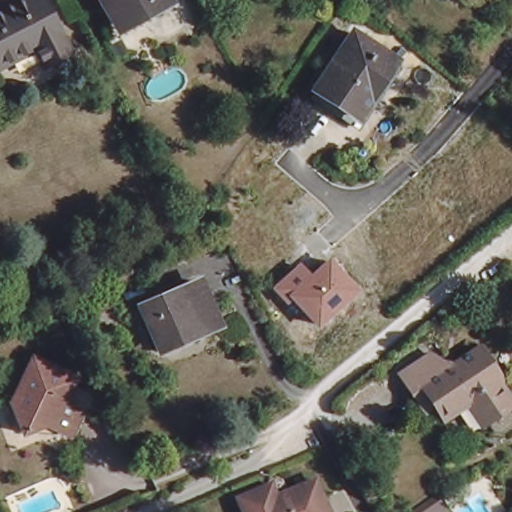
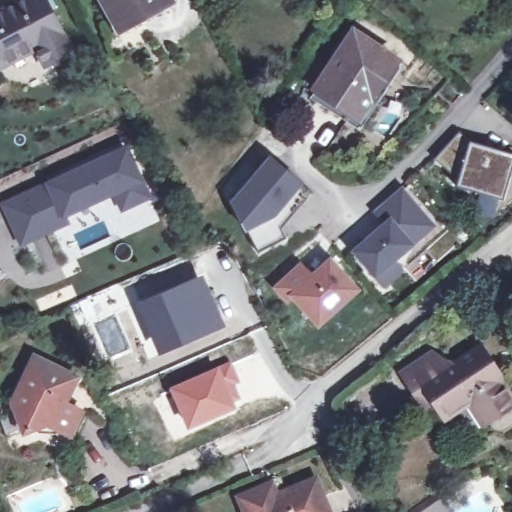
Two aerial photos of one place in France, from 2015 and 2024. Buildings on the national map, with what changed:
unchanged [(0,57),(0,4),(9,0),(36,0),(62,47),(40,59),(35,62),(26,44),(0,57)]
unchanged [(170,0),(171,4),(120,32),(102,0),(170,0)]
unchanged [(395,62),(361,117),(360,118),(360,119),(359,120),(358,120),(358,121),(357,121),(356,122),(355,122),(353,122),(352,122),(351,122),(350,122),(349,122),(348,121),(347,121),(347,120),(330,110),(329,112),(310,100),(352,32),(395,62)]
unchanged [(433,161),(457,132),(468,142),(512,154),(512,167),(502,201),(455,187),(457,180),(445,170),(433,161)]
new [(123,148),(146,197),(120,209),(112,192),(61,216),(65,222),(20,244),(1,206),(123,148)]
unchanged [(268,156),(291,176),(267,203),(279,227),(284,238),(255,252),(230,201),(268,156)]
new [(291,176),(310,192),(279,227),(267,203),(291,176)]
new [(373,212),(383,204),(401,189),(433,227),(393,261),(401,271),(381,287),(351,250),(383,224),(373,212)]
unchanged [(318,330),(291,301),(285,305),(271,288),(299,262),(310,276),(328,257),(359,290),(318,330)]
unchanged [(142,307),(200,283),(217,322),(160,347),(142,307)]
unchanged [(88,303),(106,296),(110,307),(92,315),(88,303)]
unchanged [(421,408),(395,369),(425,350),(436,367),(473,343),(492,372),(492,376),(506,399),(505,401),(511,411),(509,422),(496,430),(486,427),(480,417),(465,395),(438,412),(430,402),(421,408)]
unchanged [(62,397),(76,405),(65,426),(43,416),(19,423),(7,394),(25,355),(28,350),(71,371),(68,377),(60,392),(62,397)]
new [(231,360),(241,382),(235,386),(238,396),(235,397),(238,406),(187,429),(168,387),(231,360)]
unchanged [(322,512),(238,512),(233,502),(258,492),(265,490),(270,502),(310,485),(322,512)]

